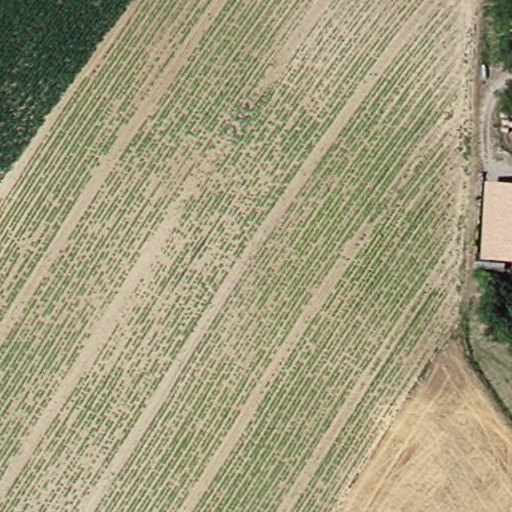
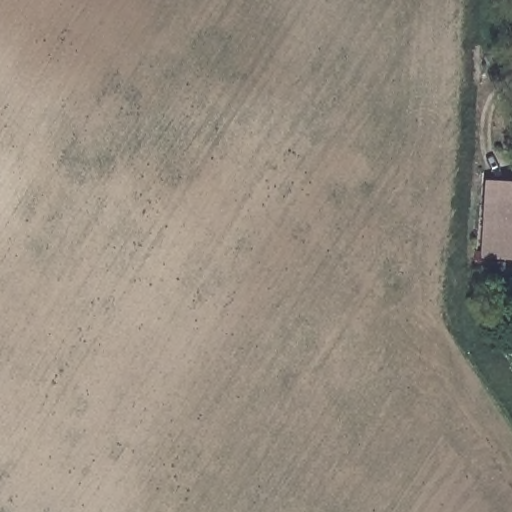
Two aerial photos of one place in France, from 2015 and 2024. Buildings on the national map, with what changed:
unchanged [(481,267),(481,254),(495,254),(496,185),(511,185),(510,254),(495,254),(496,267),(481,267)]
unchanged [(510,254),(511,185),(512,185),(512,254),(510,254)]

